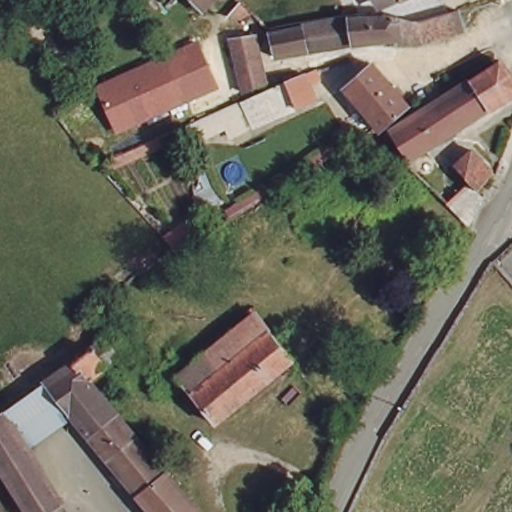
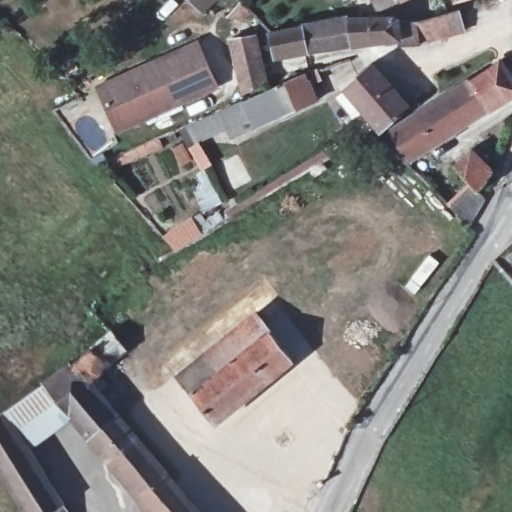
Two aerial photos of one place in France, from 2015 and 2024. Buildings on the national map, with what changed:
unchanged [(191,0),(204,0),(195,5),(191,0)]
unchanged [(256,10),(246,15),(234,11),(247,1),(256,10)]
unchanged [(400,47),(399,37),(355,45),(279,57),(272,29),(348,14),(404,7),(407,20),(461,5),(467,31),(400,47)]
unchanged [(257,33),(270,78),(249,90),(235,39),(257,33)]
unchanged [(117,135),(92,84),(196,38),(220,87),(117,135)]
unchanged [(459,130),(418,156),(400,126),(509,59),(512,63),(512,97),(459,130)]
unchanged [(380,61),(380,62),(416,104),(397,121),(390,128),(378,115),(353,85),(380,61)]
unchanged [(259,119),(249,96),(251,95),(252,95),(290,79),(294,77),(309,70),(321,98),(303,106),(300,101),(261,119),(259,119)]
unchanged [(249,96),(259,119),(225,134),(223,130),(188,145),(180,126),(249,96)]
unchanged [(470,222),(452,203),(436,186),(459,164),(475,146),(501,173),(483,190),(491,200),(470,222)]
unchanged [(198,208),(209,225),(177,246),(164,231),(198,208)]
unchanged [(218,420),(181,374),(230,334),(260,310),(297,356),(218,420)]
unchanged [(69,415),(42,384),(73,362),(91,348),(107,367),(90,382),(200,512),(152,512),(69,415)]
unchanged [(161,392),(156,388),(164,380),(169,385),(161,392)]
unchanged [(25,446),(4,412),(42,384),(69,415),(25,446)]
unchanged [(66,512),(28,512),(0,470),(0,415),(4,412),(25,446),(66,512)]

